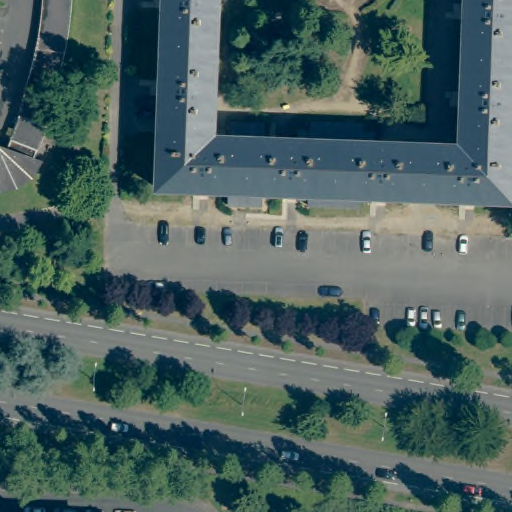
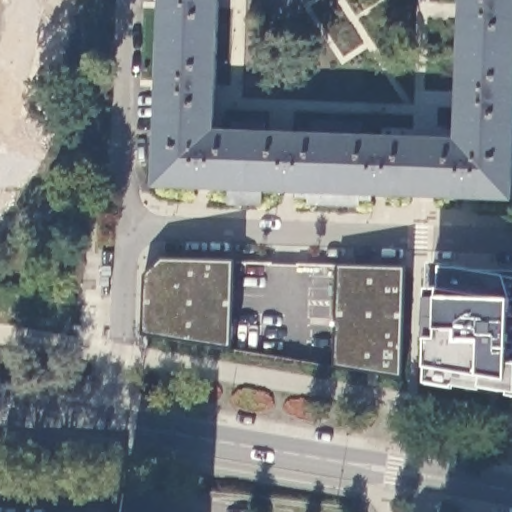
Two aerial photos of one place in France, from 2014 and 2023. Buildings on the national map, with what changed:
unchanged [(41,163),(35,171),(28,177),(20,181),(11,184),(3,184),(0,184),(0,144),(2,139),(11,143),(13,138),(23,110),(39,54),(44,26),(48,5),(48,0),(77,0),(76,9),(70,45),(50,120),(40,149),(38,154),(45,155),(41,163)]
unchanged [(164,0),(217,0),(215,48),(162,45),(164,0)]
unchanged [(465,0),(512,0),(512,57),(462,55),(465,0)]
unchanged [(158,134),(162,45),(215,48),(212,121),(196,121),(196,135),(158,134)]
unchanged [(512,147),(475,145),(475,133),(476,130),(460,129),(462,55),(512,57),(512,147)]
unchanged [(358,207),(308,205),(308,199),(296,199),(296,193),(284,192),(262,191),(262,206),(228,204),(229,189),(165,187),(156,187),(158,134),(196,135),(231,136),(232,123),(264,124),(264,138),(299,139),(336,140),(368,141),(373,142),(425,144),(423,198),(403,197),(371,195),(371,202),(358,201),(358,207)]
unchanged [(368,141),(336,140),(299,139),(299,131),(311,132),(311,123),(361,124),(361,134),(374,134),(373,142),(368,141)]
unchanged [(512,201),(423,198),(425,144),(475,145),(512,147),(512,201)]
new [(234,318),(236,319),(234,351),(142,336),(144,275),(161,259),(236,263),(234,318)]
new [(334,368),(339,267),(404,270),(402,379),(334,368)]
new [(427,385),(429,293),(443,293),(442,269),(506,278),(512,301),(512,319),(512,394),(483,390),(483,393),(455,389),(455,391),(427,385)]

